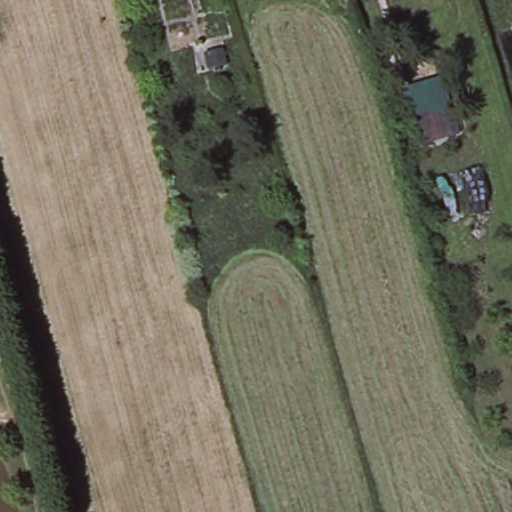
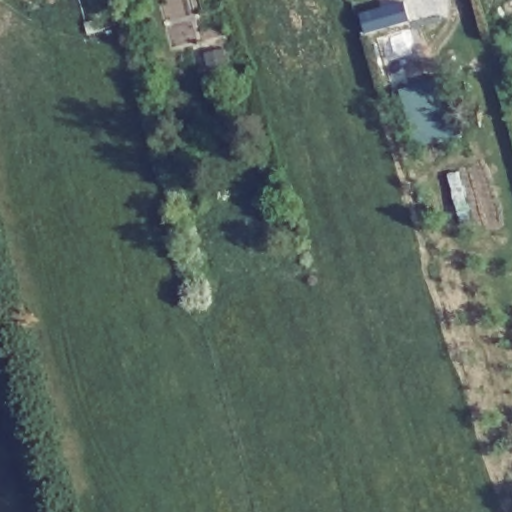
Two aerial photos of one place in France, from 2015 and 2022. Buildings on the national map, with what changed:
new [(404,2),(410,21),(364,33),(359,15),(404,2)]
unchanged [(442,78),(458,134),(417,148),(400,88),(395,89),(387,63),(399,60),(407,88),(442,78)]
unchanged [(470,166),(484,214),(447,223),(434,178),(470,166)]

